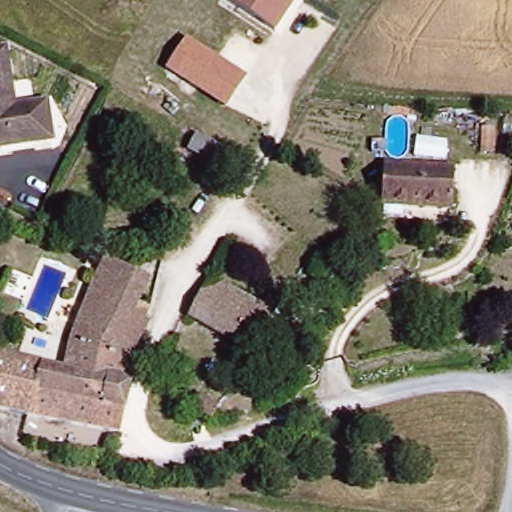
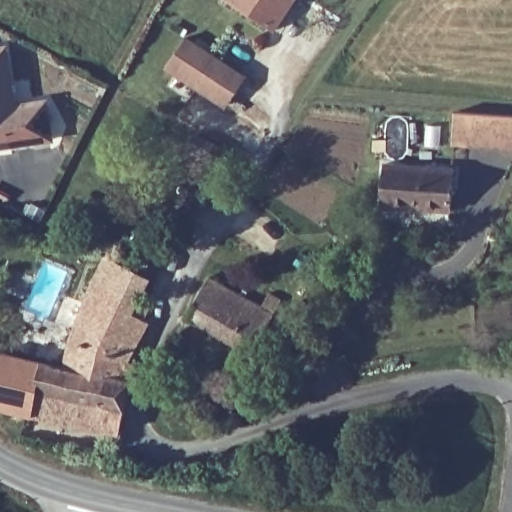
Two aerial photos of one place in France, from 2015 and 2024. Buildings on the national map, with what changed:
unchanged [(277,32),(225,0),(297,0),(277,32)]
unchanged [(247,74),(225,108),(166,69),(187,37),(247,74)]
unchanged [(4,45),(16,103),(47,98),(55,136),(0,146),(0,46),(4,45)]
new [(512,118),(512,152),(452,147),(453,113),(512,118)]
unchanged [(213,157),(190,145),(197,130),(220,143),(213,157)]
unchanged [(451,162),(450,200),(382,197),(383,160),(451,162)]
unchanged [(100,256),(146,279),(136,301),(90,278),(100,256)]
unchanged [(128,378),(116,430),(0,407),(0,354),(61,367),(68,333),(90,278),(136,301),(147,307),(140,320),(145,323),(127,350),(126,356),(135,360),(128,378)]
unchanged [(264,349),(198,317),(217,278),(283,311),(264,349)]
unchanged [(195,411),(205,396),(223,407),(214,425),(195,411)]

